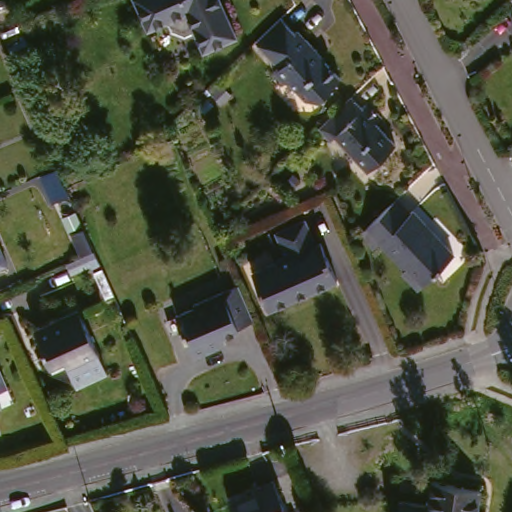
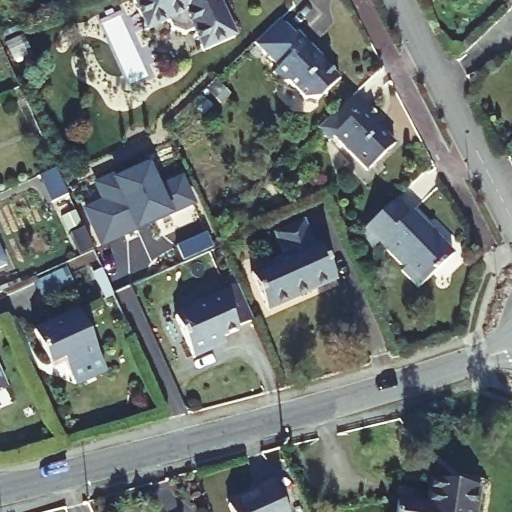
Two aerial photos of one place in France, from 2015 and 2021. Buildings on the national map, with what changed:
unchanged [(211,51),(203,31),(193,35),(180,30),(176,20),(157,29),(145,0),(229,0),(244,38),(211,51)]
unchanged [(511,8),(512,7),(512,9),(511,8)]
unchanged [(302,38),(307,34),(327,51),(325,54),(349,79),(328,100),(319,100),(303,84),(293,84),(284,74),(289,70),(262,43),(285,20),(302,38)]
unchanged [(369,109),(384,125),(380,129),(398,149),(373,173),(343,140),(339,144),(325,126),(353,100),(364,114),(369,109)]
new [(86,209),(105,200),(98,184),(111,179),(149,164),(160,189),(182,179),(193,205),(175,214),(176,219),(132,237),(130,232),(102,244),(86,209)]
unchanged [(53,170),(66,197),(50,204),(38,177),(53,170)]
unchanged [(419,211),(462,257),(427,289),(408,271),(413,267),(386,240),(379,248),(363,232),(370,225),(399,197),(415,214),(419,211)]
unchanged [(287,264),(287,263),(296,259),(285,235),(316,222),(326,245),(331,244),(346,277),(347,279),(276,310),(261,276),(287,264)]
unchanged [(248,297),(257,318),(242,324),(244,329),(231,335),(233,341),(198,357),(179,313),(242,284),(248,296),(248,297)]
unchanged [(85,315),(108,360),(77,374),(70,362),(57,367),(41,335),(85,315)]
unchanged [(0,406),(0,399),(2,404),(0,406)]
unchanged [(438,481),(485,490),(481,512),(399,512),(401,501),(433,506),(438,481)]
unchanged [(282,486),(293,512),(238,512),(235,507),(282,486)]

